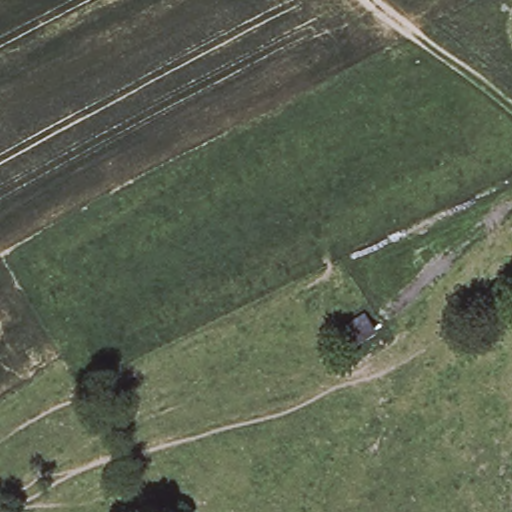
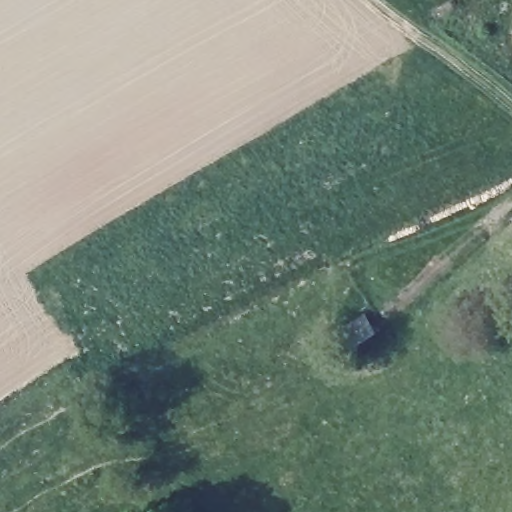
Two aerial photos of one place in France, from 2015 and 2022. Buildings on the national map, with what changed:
unchanged [(350,347),(340,331),(363,315),(375,330),(350,347)]

